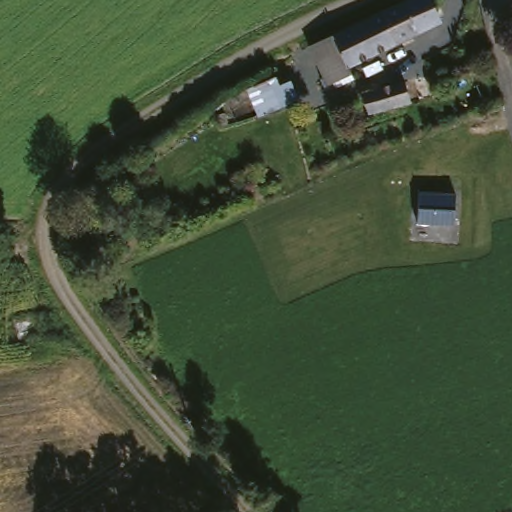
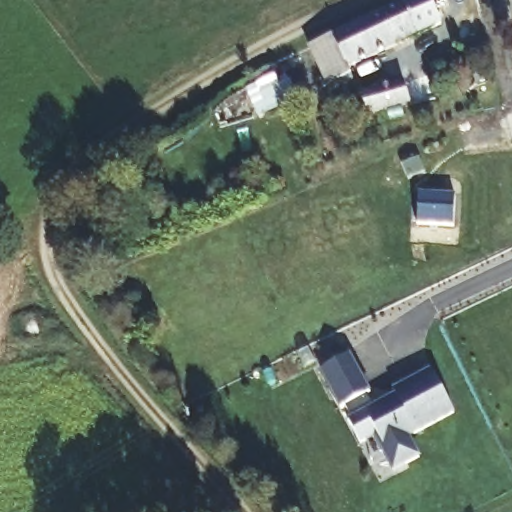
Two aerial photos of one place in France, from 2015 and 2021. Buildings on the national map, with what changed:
unchanged [(363,58),(349,25),(409,0),(431,0),(441,21),(363,58)]
unchanged [(343,66),(347,75),(325,85),(306,48),(333,31),(349,25),(363,58),(343,66)]
unchanged [(362,96),(403,84),(422,78),(430,100),(428,100),(411,105),(370,118),(362,96)]
unchanged [(252,123),(240,96),(270,81),(275,91),(287,88),(293,104),(252,123)]
unchanged [(420,195),(457,197),(455,227),(418,225),(420,195)]
new [(350,358),(371,396),(367,398),(373,411),(396,399),(393,394),(432,373),(453,415),(408,439),(418,460),(393,473),(381,450),(383,448),(377,437),(360,446),(348,424),(352,422),(345,409),(342,411),(321,373),(350,358)]

